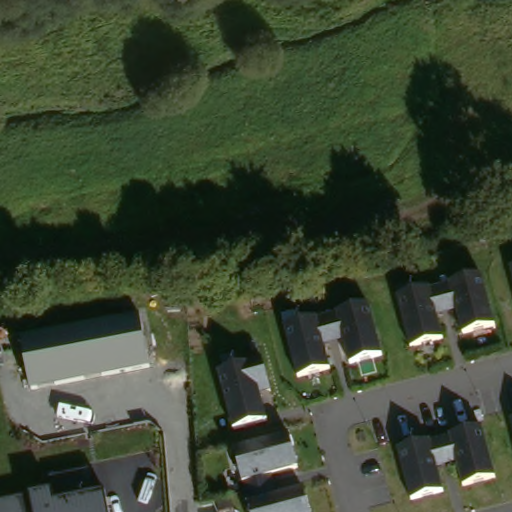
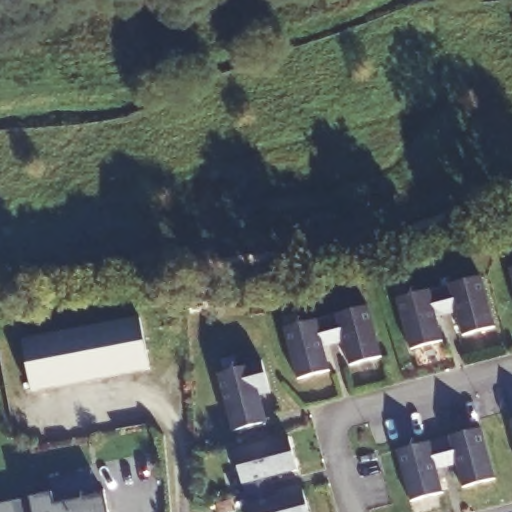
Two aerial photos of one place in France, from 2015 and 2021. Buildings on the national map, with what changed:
unchanged [(508,275),(512,274),(512,290),(508,275)]
unchanged [(465,341),(459,317),(439,322),(445,346),(412,353),(400,302),(432,295),(432,296),(452,291),(452,290),(485,282),(497,332),(465,341)]
unchanged [(346,346),(326,350),(332,373),(300,382),(287,331),(319,322),(320,323),(339,318),(339,317),(371,310),(384,361),(352,368),(346,346)]
unchanged [(152,367),(34,388),(25,340),(143,317),(152,367)]
unchanged [(235,437),(220,381),(252,372),(252,370),(264,367),(270,393),(272,400),(261,402),(268,429),(235,437)]
unchanged [(431,447),(451,442),(451,441),(481,433),(494,485),(463,492),(457,469),(437,474),(443,497),(411,505),(398,455),(431,446),(431,447)]
unchanged [(308,512),(249,512),(247,506),(249,506),(244,486),(242,486),(235,452),(290,438),(298,472),(272,478),(277,498),(303,492),(308,512)]
unchanged [(0,512),(0,505),(56,492),(54,479),(94,470),(99,497),(109,495),(112,512),(0,512)]

